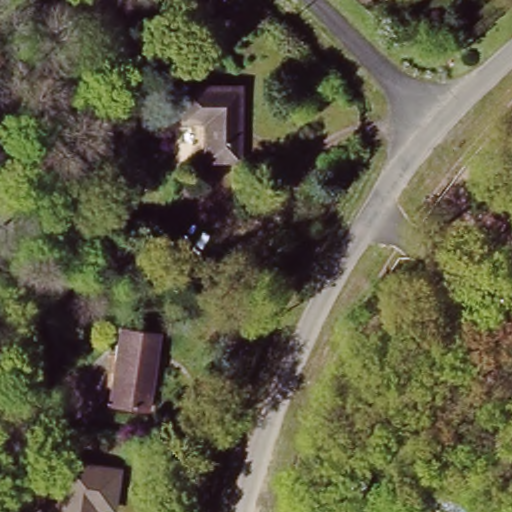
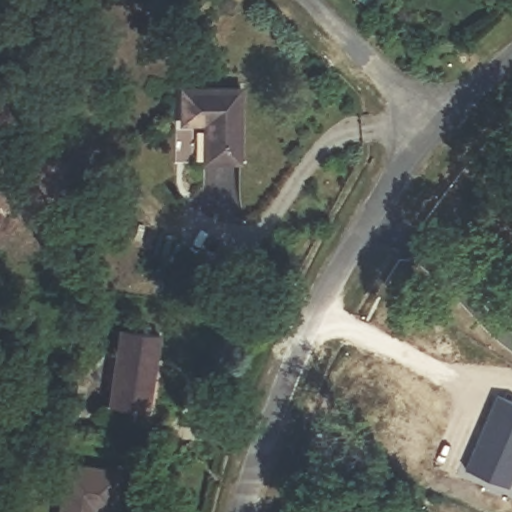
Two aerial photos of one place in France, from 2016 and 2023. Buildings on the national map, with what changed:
unchanged [(181,92),(212,93),(239,94),(237,162),(204,162),(206,128),(179,127),(179,125),(181,92)]
unchanged [(126,329),(162,335),(146,410),(111,405),(126,329)]
new [(497,400),(512,406),(512,487),(511,491),(468,474),(497,400)]
unchanged [(119,472),(112,512),(59,512),(67,462),(119,472)]

